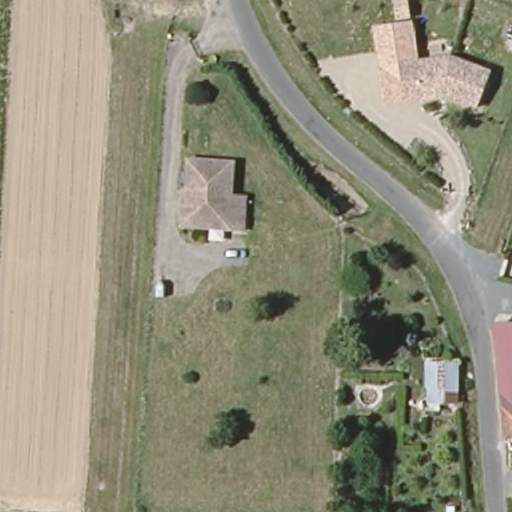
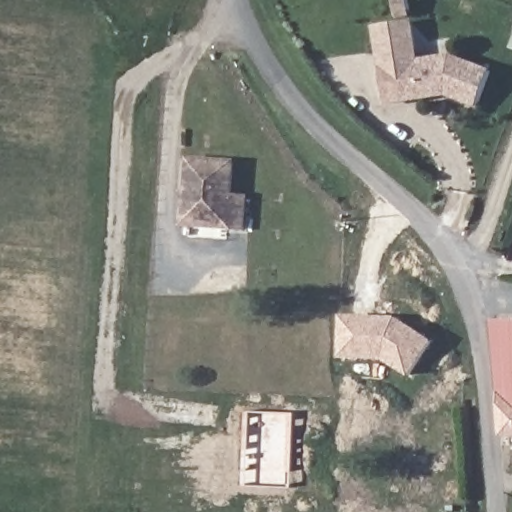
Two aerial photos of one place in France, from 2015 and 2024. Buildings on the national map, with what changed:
unchanged [(396,61),(402,102),(385,106),(372,27),(412,21),(418,57),(396,61)]
unchanged [(475,108),(444,95),(402,102),(396,61),(443,52),(490,70),(475,108)]
unchanged [(234,166),(232,197),(246,197),(246,229),(229,228),(229,224),(187,222),(190,162),(234,166)]
new [(408,377),(384,359),(340,358),(340,317),(395,318),(433,342),(408,377)]
unchanged [(510,435),(498,323),(512,324),(512,435),(510,435)]
unchanged [(438,407),(428,407),(429,361),(444,361),(457,361),(461,398),(446,399),(438,400),(438,407)]
new [(236,486),(239,412),(287,413),(284,488),(236,486)]

